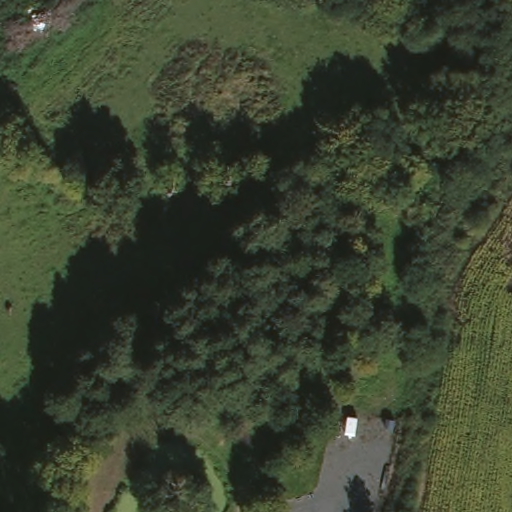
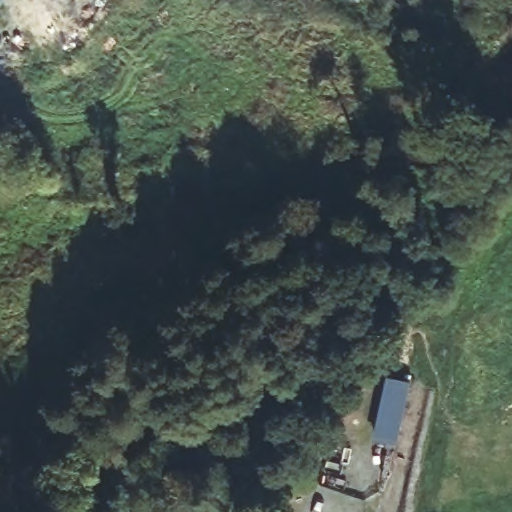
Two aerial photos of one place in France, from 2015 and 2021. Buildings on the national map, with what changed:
new [(391,372),(411,376),(397,440),(377,435),(391,372)]

